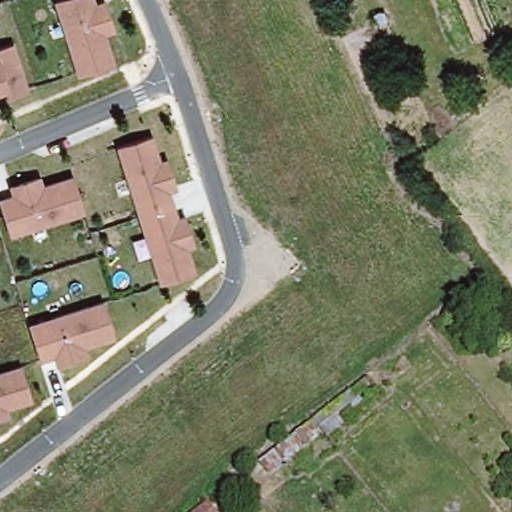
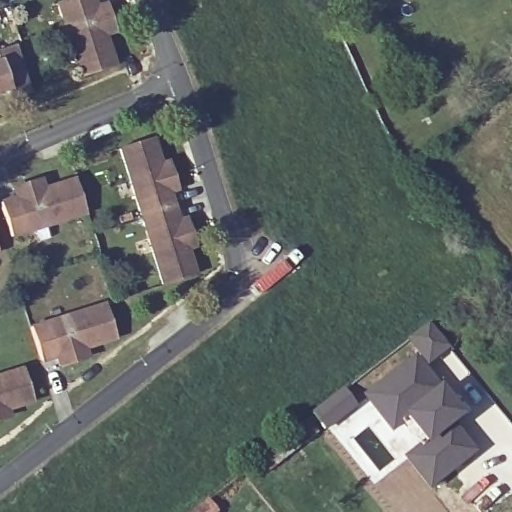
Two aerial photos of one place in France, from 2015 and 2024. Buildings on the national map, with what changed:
unchanged [(60,0),(96,0),(97,4),(108,0),(118,34),(107,36),(116,66),(77,78),(53,2),(60,0)]
unchanged [(15,41),(31,93),(10,98),(9,90),(0,93),(0,45),(15,41)]
unchanged [(116,146),(153,135),(160,158),(168,155),(179,190),(171,193),(179,217),(187,214),(197,245),(189,249),(197,274),(160,286),(116,146)]
unchanged [(11,194),(8,183),(39,174),(43,185),(74,177),(86,214),(9,237),(0,206),(0,198),(11,194)]
unchanged [(28,323),(104,301),(115,339),(85,348),(89,359),(57,368),(54,358),(40,362),(28,323)]
new [(428,322),(449,350),(427,368),(415,353),(406,340),(428,322)]
new [(415,353),(427,368),(467,417),(455,426),(427,446),(423,442),(407,422),(392,433),(363,394),(415,353)]
unchanged [(21,366),(33,402),(9,409),(12,418),(0,422),(0,372),(21,366)]
unchanged [(351,386),(358,394),(320,424),(314,416),(351,386)]
unchanged [(275,458),(269,449),(308,421),(315,428),(275,458)]
new [(423,442),(427,446),(455,426),(478,453),(430,491),(403,458),(423,442)]
unchanged [(206,499),(217,512),(190,512),(206,499)]

